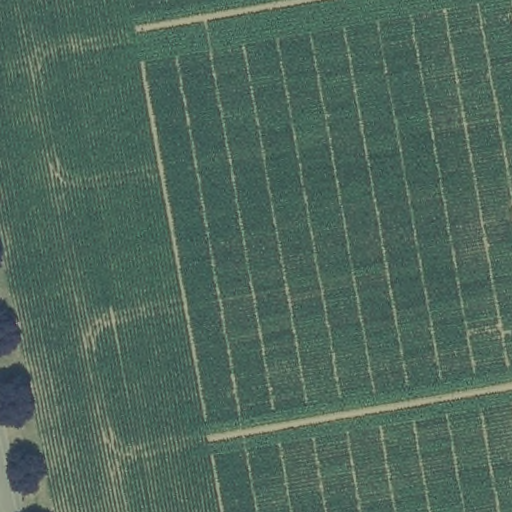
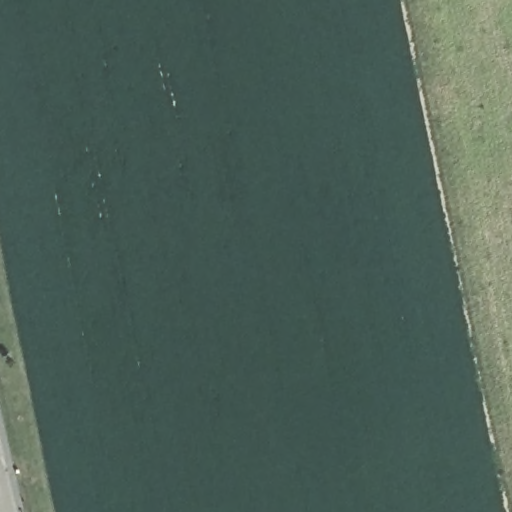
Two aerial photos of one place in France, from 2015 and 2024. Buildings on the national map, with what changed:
[]

